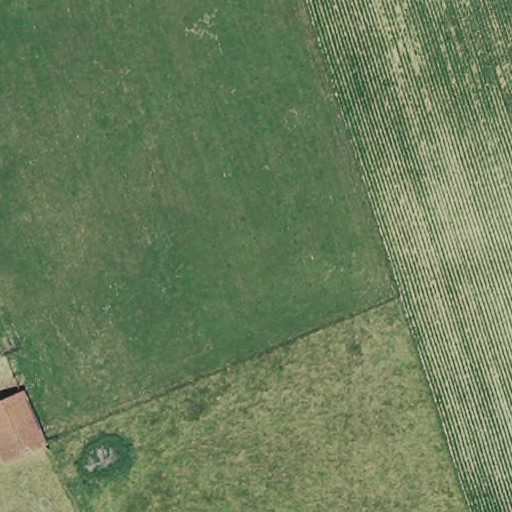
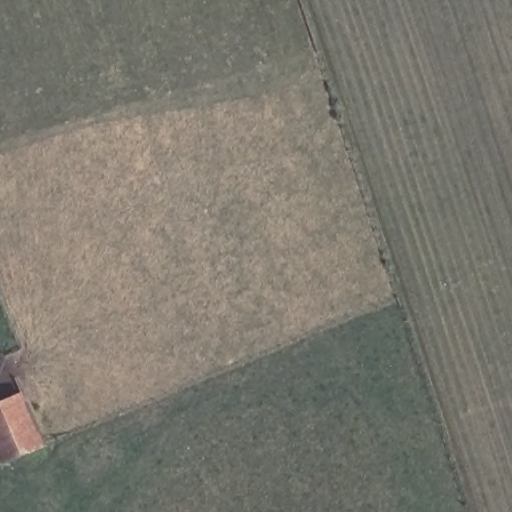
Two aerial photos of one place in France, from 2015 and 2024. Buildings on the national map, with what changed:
unchanged [(1,466),(0,462),(0,402),(27,390),(50,445),(1,466)]

